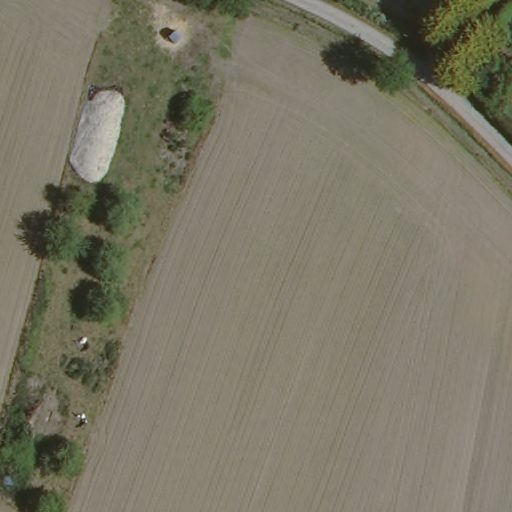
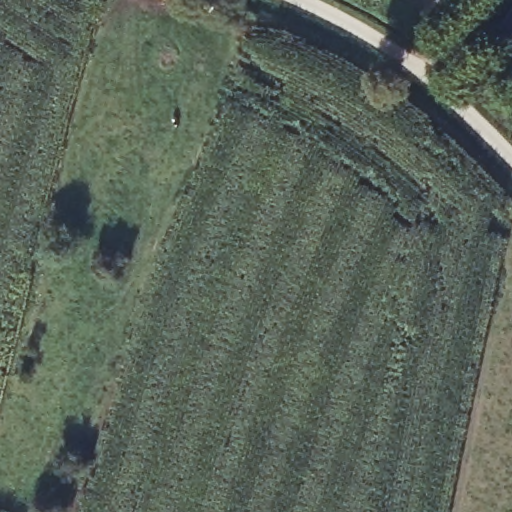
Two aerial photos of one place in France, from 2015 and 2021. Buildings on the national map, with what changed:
unchanged [(508,13),(512,15),(512,46),(494,35),(508,13)]

